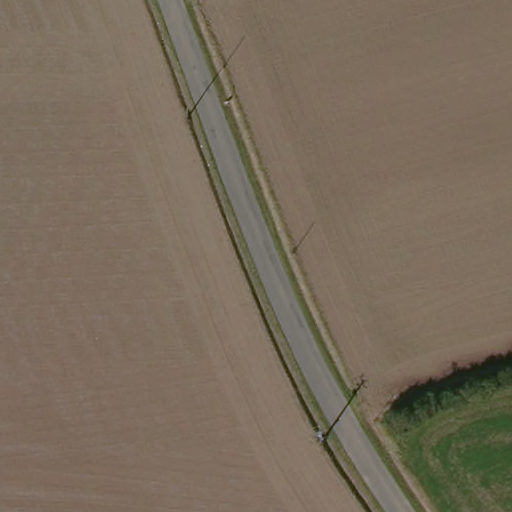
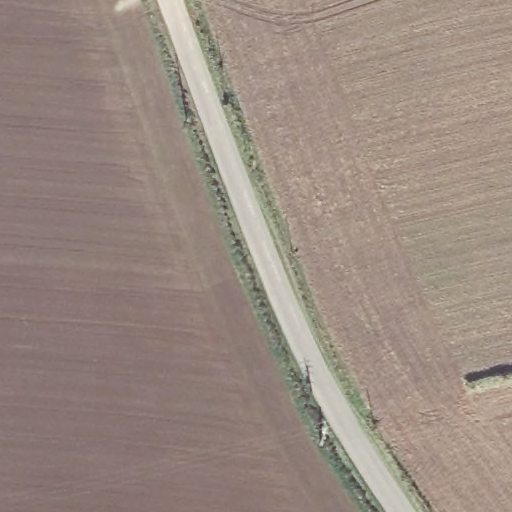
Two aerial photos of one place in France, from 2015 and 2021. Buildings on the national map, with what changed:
[]

